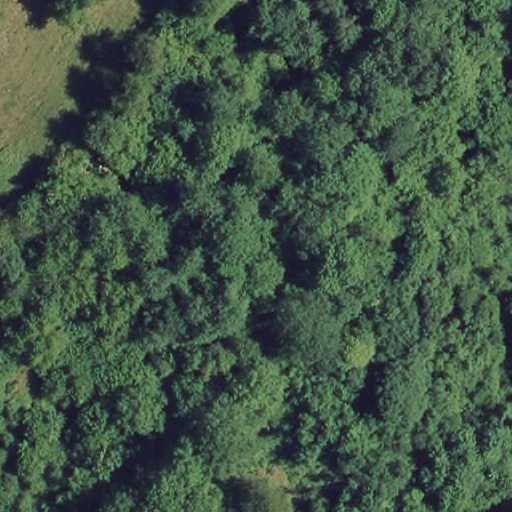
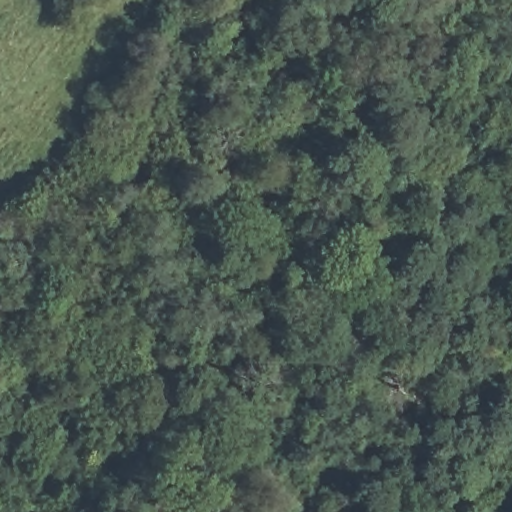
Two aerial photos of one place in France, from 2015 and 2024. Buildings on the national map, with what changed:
unchanged [(169,507),(191,481),(211,499),(199,512),(175,512),(169,507)]

